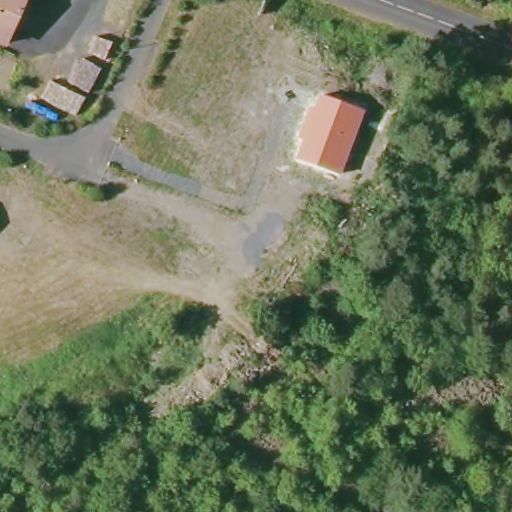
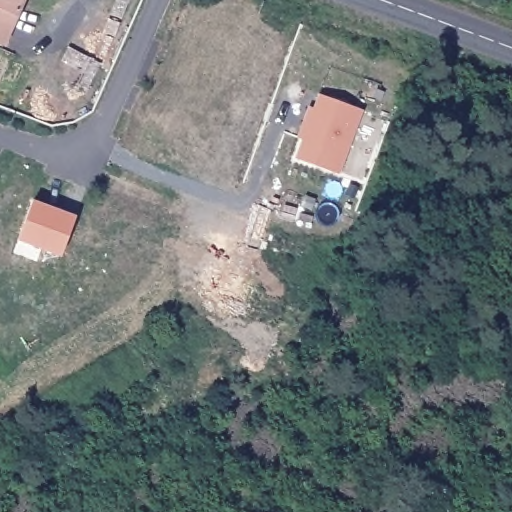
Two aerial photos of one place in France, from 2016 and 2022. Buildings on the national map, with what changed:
unchanged [(0,40),(0,0),(25,0),(8,44),(0,40)]
unchanged [(362,110),(340,175),(295,159),(302,139),(298,138),(307,108),(313,109),(317,95),(362,110)]
new [(74,214),(59,255),(16,240),(32,201),(74,214)]

